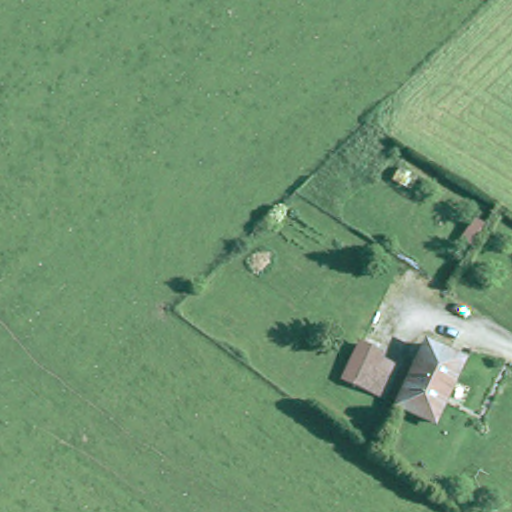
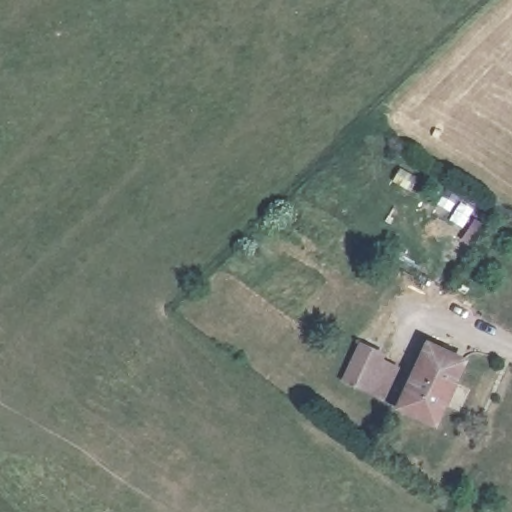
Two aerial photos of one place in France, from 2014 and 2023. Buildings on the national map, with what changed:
unchanged [(386,401),(357,387),(372,353),(401,368),(386,401)]
unchanged [(397,417),(426,354),(460,372),(432,433),(397,417)]

